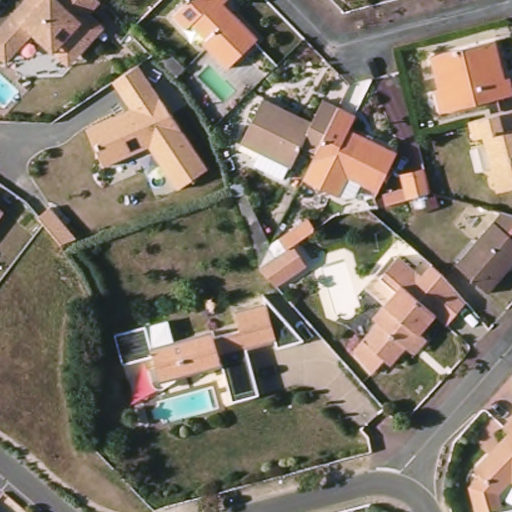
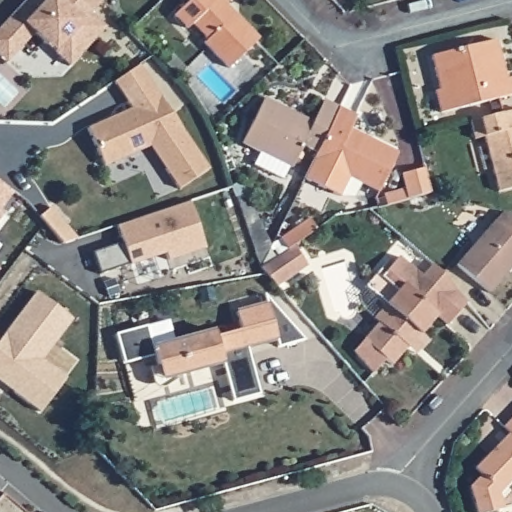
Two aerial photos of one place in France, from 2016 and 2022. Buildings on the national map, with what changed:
unchanged [(0,61),(0,24),(21,3),(39,24),(61,6),(56,0),(92,0),(97,5),(86,17),(101,29),(75,55),(62,40),(48,55),(29,35),(2,63),(0,61)]
unchanged [(235,14),(259,39),(229,68),(205,44),(207,40),(192,25),(188,29),(175,16),(190,0),(229,0),(225,4),(235,14)]
unchanged [(502,59),(507,79),(512,78),(512,80),(512,95),(441,114),(436,91),(441,90),(433,56),(497,40),(502,59)]
unchanged [(170,53),(186,70),(176,76),(161,61),(170,53)]
unchanged [(177,188),(149,145),(104,166),(86,128),(130,107),(115,81),(137,64),(207,169),(177,188)]
unchanged [(292,169),(242,144),(265,100),(285,109),(313,123),(324,101),(339,109),(317,154),(303,148),(292,169)]
unchanged [(358,118),(352,130),(398,155),(379,192),(348,177),(338,197),(303,180),(313,160),(317,154),(339,109),(358,118)]
unchanged [(499,192),(484,138),(475,141),(470,121),(512,111),(512,188),(499,192)]
new [(93,252),(122,241),(117,225),(190,200),(206,247),(170,259),(167,252),(130,263),(100,273),(93,252)]
unchanged [(258,251),(251,226),(244,207),(255,202),(263,220),(277,245),(264,268),(258,251)]
new [(50,208),(77,239),(61,244),(38,217),(50,208)]
unchanged [(0,215),(0,210),(2,212),(0,215)]
unchanged [(490,293),(457,264),(502,213),(512,215),(512,268),(490,293)]
unchanged [(312,268),(302,274),(281,287),(264,268),(289,254),(283,244),(312,225),(318,234),(296,249),(305,260),(312,268)]
unchanged [(402,343),(401,342),(385,359),(378,354),(366,367),(347,345),(376,320),(371,315),(385,303),(371,287),(383,276),(404,257),(425,280),(436,269),(461,299),(442,321),(431,311),(414,329),(421,336),(415,342),(408,349),(402,343)]
new [(0,380),(0,339),(36,292),(71,318),(41,360),(64,376),(40,410),(0,380)]
unchanged [(150,325),(155,348),(217,334),(217,340),(244,334),(240,316),(270,309),(268,300),(309,347),(280,353),(278,345),(249,352),(259,399),(232,405),(224,366),(162,380),(156,356),(125,362),(119,332),(150,325)]
unchanged [(506,421),(512,414),(512,426),(506,421)]
unchanged [(500,489),(503,504),(478,510),(473,487),(487,470),(481,465),(494,449),(512,427),(512,475),(500,489)]

